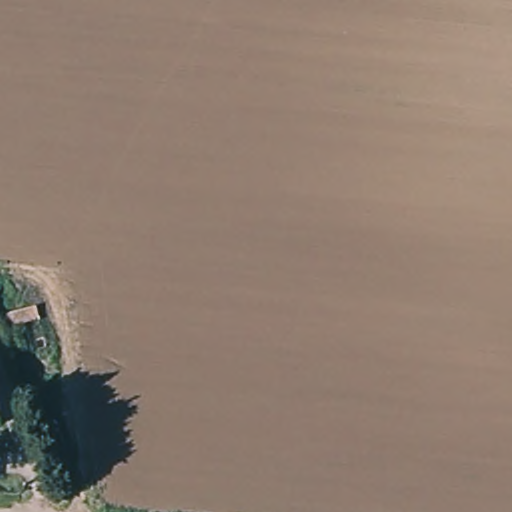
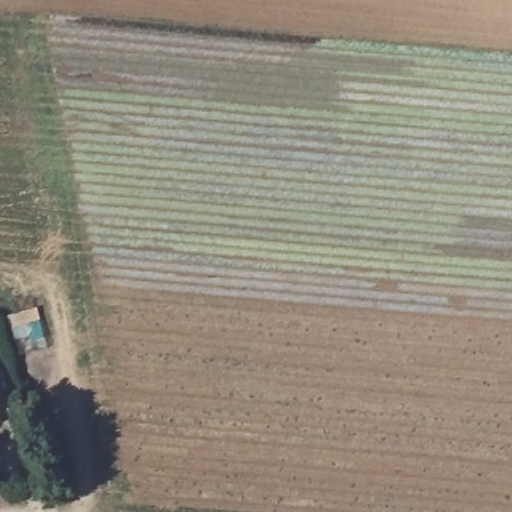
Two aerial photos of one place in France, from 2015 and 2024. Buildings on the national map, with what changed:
unchanged [(10,329),(6,316),(35,307),(39,321),(10,329)]

